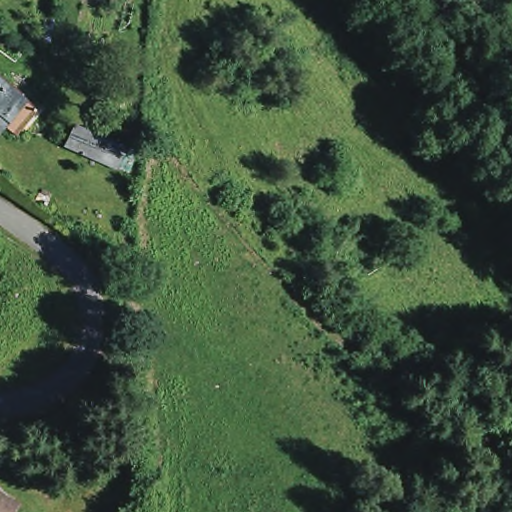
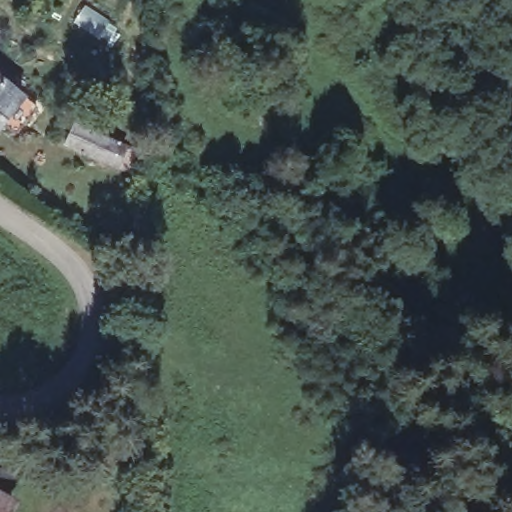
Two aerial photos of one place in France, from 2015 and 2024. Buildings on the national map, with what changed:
unchanged [(7,95),(11,93),(27,107),(6,135),(0,130),(0,90),(7,95)]
unchanged [(73,124),(124,146),(117,168),(64,144),(73,124)]
unchanged [(16,498),(10,512),(0,512),(0,490),(16,498)]

